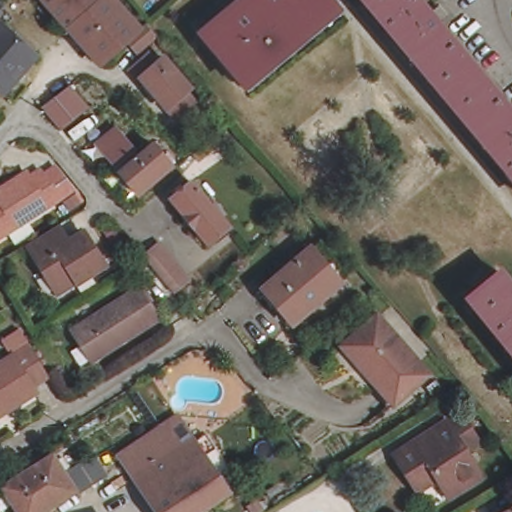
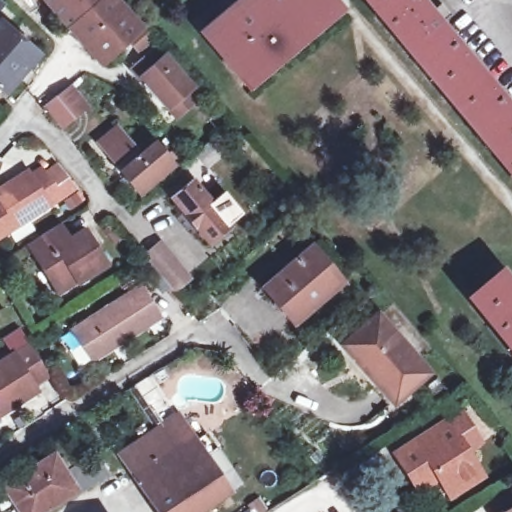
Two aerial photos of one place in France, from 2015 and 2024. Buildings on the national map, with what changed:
unchanged [(47,0),(116,0),(144,32),(151,25),(152,27),(160,36),(142,54),(132,42),(105,66),(103,64),(102,62),(87,46),(85,48),(69,36),(74,31),(47,0)]
unchanged [(240,14),(256,0),(327,0),(335,10),(241,87),(200,36),(235,7),(240,14)]
unchanged [(363,0),(413,0),(423,12),(434,2),(442,11),(431,22),(509,115),(512,112),(512,176),(363,0)]
unchanged [(0,25),(0,6),(10,14),(0,25)]
unchanged [(0,25),(5,31),(7,30),(45,63),(12,102),(0,92),(0,25)]
unchanged [(180,120),(171,111),(144,80),(142,81),(135,72),(139,68),(152,57),(160,65),(167,59),(195,90),(190,94),(197,104),(180,120)]
unchanged [(41,109),(51,101),(57,97),(75,117),(59,130),(41,109)]
unchanged [(177,154),(181,160),(176,164),(180,169),(148,196),(130,174),(161,147),(171,159),(177,154)]
unchanged [(45,172),(55,166),(75,196),(9,239),(0,223),(0,204),(15,194),(10,186),(42,167),(45,172)]
unchanged [(234,221),(230,224),(237,234),(219,250),(181,206),(200,190),(225,217),(229,214),(234,221)]
unchanged [(63,300),(32,252),(47,244),(62,234),(69,246),(85,236),(88,241),(107,271),(63,300)]
unchanged [(295,330),(265,292),(310,254),(312,256),(320,249),(347,279),(338,287),(340,291),(295,330)]
unchanged [(127,279),(137,272),(135,270),(135,269),(150,257),(175,288),(160,300),(148,286),(138,293),(127,279)]
unchanged [(469,303),(499,278),(512,295),(512,356),(469,303)]
unchanged [(91,367),(72,336),(137,295),(157,326),(91,367)]
unchanged [(341,345),(375,316),(426,376),(393,405),(341,345)]
unchanged [(0,367),(34,346),(54,376),(39,385),(42,391),(0,417),(0,367)]
unchanged [(425,386),(435,379),(445,392),(435,400),(425,386)]
unchanged [(468,457),(480,475),(450,495),(437,476),(417,488),(394,453),(459,412),(483,447),(468,457)]
unchanged [(160,433),(182,417),(200,444),(235,493),(208,512),(165,512),(148,488),(125,457),(160,433)]
unchanged [(6,492),(10,490),(9,488),(22,480),(60,458),(81,493),(51,512),(24,512),(19,504),(7,512),(4,512),(6,492)]

